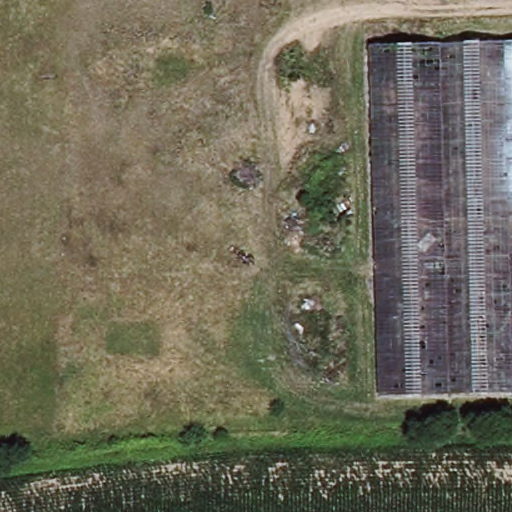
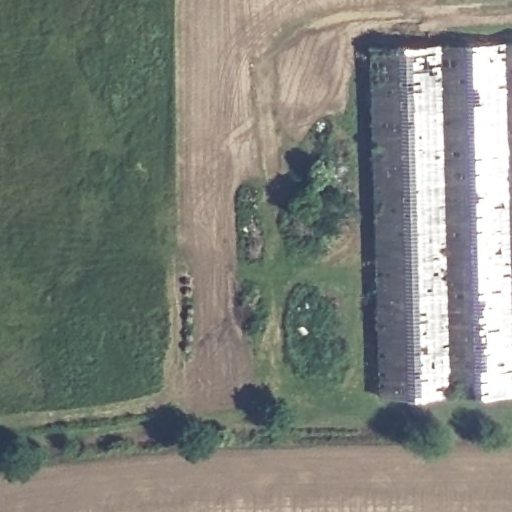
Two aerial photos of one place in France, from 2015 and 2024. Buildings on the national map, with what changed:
unchanged [(370,45),(512,42),(512,391),(378,396),(370,45)]

